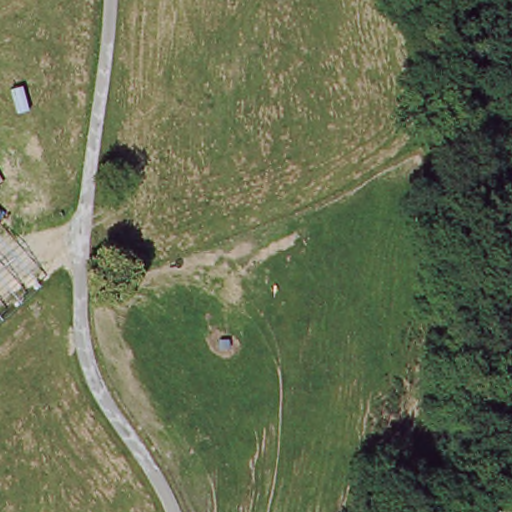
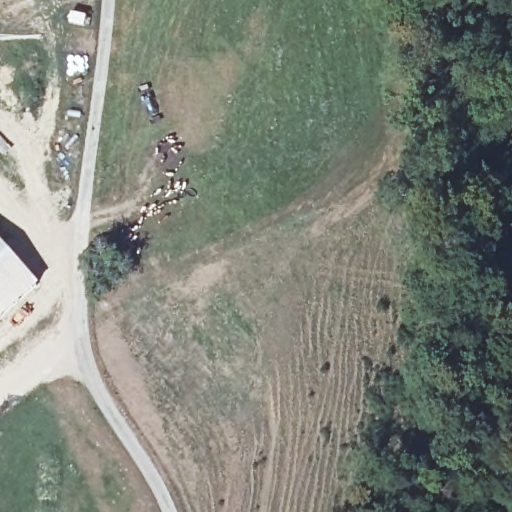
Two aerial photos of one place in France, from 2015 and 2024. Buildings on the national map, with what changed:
new [(0,317),(0,245),(36,285),(0,317)]

